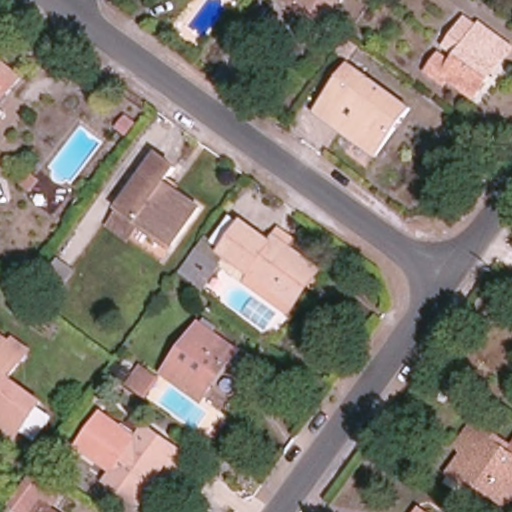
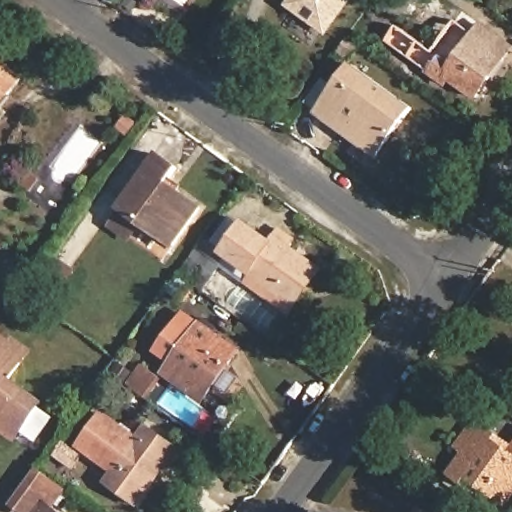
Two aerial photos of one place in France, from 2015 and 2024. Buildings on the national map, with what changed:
demolished [(329,25),(286,0),(344,0),(329,25)]
new [(325,34),(286,4),(289,0),(351,0),(325,34)]
unchanged [(512,45),(503,56),(499,53),(488,69),(492,72),(475,94),(449,75),(445,80),(427,67),(440,50),(451,59),(458,50),(448,42),(464,21),(474,29),(478,23),(480,20),(512,44),(512,45)]
unchanged [(21,78),(0,104),(0,61),(21,78)]
unchanged [(376,158),(316,114),(352,64),(412,109),(376,158)]
unchanged [(120,208),(159,155),(177,168),(166,183),(200,208),(172,246),(142,224),(120,208)]
unchanged [(277,249),(286,236),(298,244),(293,252),(322,273),(292,316),(228,270),(234,263),(227,258),(229,255),(247,230),(248,228),(277,249)]
unchanged [(185,278),(204,252),(219,263),(200,288),(185,278)]
unchanged [(59,259),(75,270),(61,292),(44,280),(59,259)]
unchanged [(237,348),(204,395),(166,368),(199,321),(237,348)]
unchanged [(22,430),(15,439),(0,429),(0,335),(11,343),(14,340),(29,351),(20,364),(9,380),(41,402),(37,408),(51,418),(36,440),(22,430)]
unchanged [(147,395),(126,380),(141,359),(162,374),(147,395)]
unchanged [(137,440),(145,429),(185,457),(177,469),(167,462),(136,505),(106,483),(114,472),(79,447),(102,415),(137,440)]
unchanged [(483,426),(509,445),(512,441),(512,496),(505,505),(453,468),(483,426)]
unchanged [(28,512),(25,512),(13,503),(37,468),(63,487),(52,502),(40,494),(28,512)]
unchanged [(55,512),(34,512),(41,502),(55,512)]
unchanged [(421,512),(420,512),(420,511),(421,512)]

